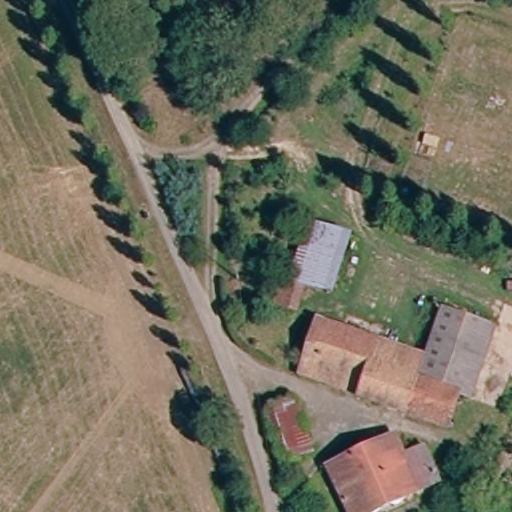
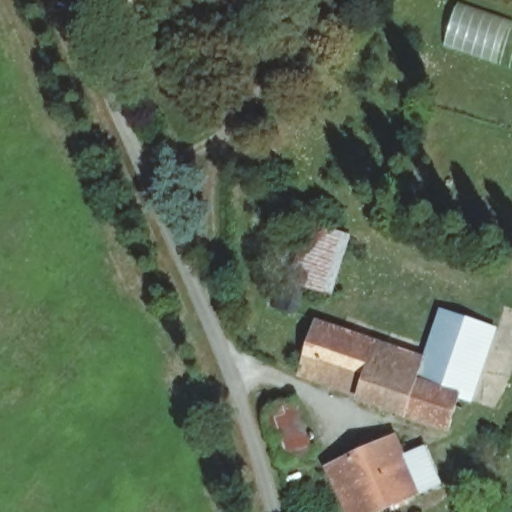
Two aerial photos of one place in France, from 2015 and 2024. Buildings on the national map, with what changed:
new [(512,22),(512,69),(444,46),(459,4),(512,22)]
unchanged [(352,239),(331,300),(301,290),(292,318),(268,310),(278,280),(286,284),(306,224),(352,239)]
unchanged [(475,400),(462,396),(451,430),(366,400),(367,392),(305,371),(323,321),(429,358),(446,313),(498,329),(475,400)]
unchanged [(301,398),(318,452),(285,463),(266,410),(301,398)]
unchanged [(392,445),(400,463),(423,455),(438,489),(382,512),(347,512),(328,468),(392,445)]

